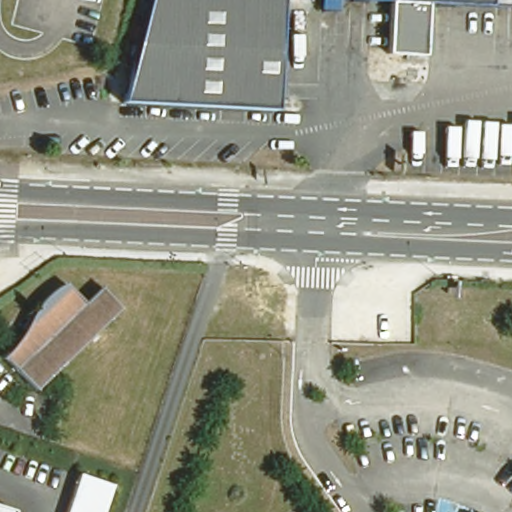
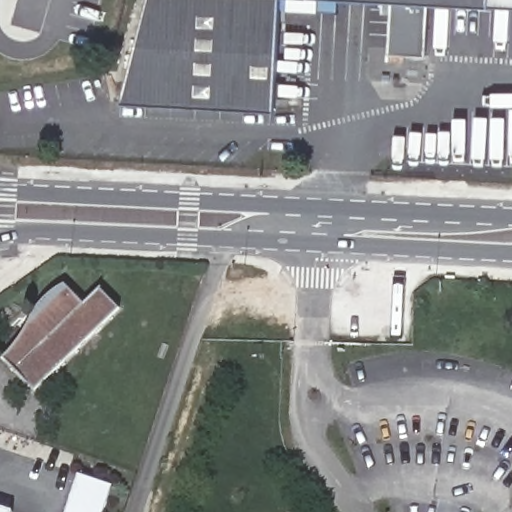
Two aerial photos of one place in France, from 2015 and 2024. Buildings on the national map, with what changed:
unchanged [(344,5),(309,1),(305,1),(304,25),(300,102),(298,133),(298,140),(270,139),(269,139),(177,134),(114,131),(133,58),(147,0),(512,0),(512,12),(386,6),(344,5)]
unchanged [(39,312),(41,309),(43,305),(45,302),(48,299),(51,297),(51,296),(54,294),(57,292),(60,290),(63,288),(67,286),(70,285),(89,304),(106,289),(124,309),(39,391),(8,358),(9,357),(10,356),(11,355),(12,353),(13,352),(14,351),(15,349),(16,348),(17,347),(18,345),(19,344),(20,343),(21,341),(22,340),(23,339),(24,337),(25,336),(26,335),(27,333),(28,332),(29,330),(29,329),(30,327),(31,326),(32,325),(33,323),(34,322),(34,320),(35,319),(37,315),(39,312)]
unchanged [(100,512),(64,512),(78,469),(111,480),(100,512)]
unchanged [(16,510),(16,512),(0,512),(0,506),(16,510)]

